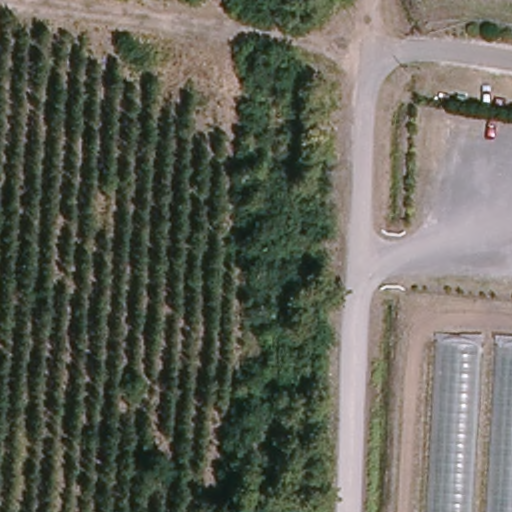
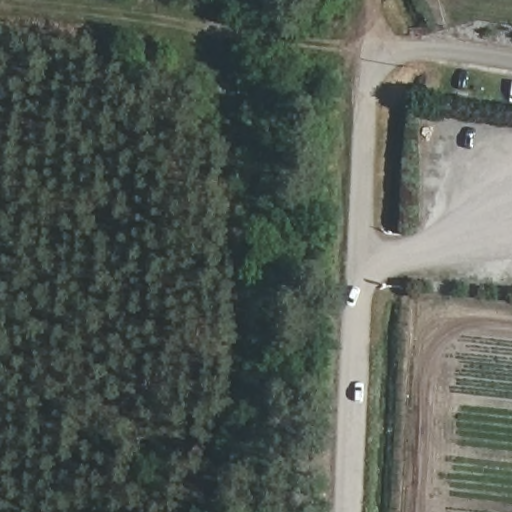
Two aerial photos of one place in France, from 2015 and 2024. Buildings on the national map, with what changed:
demolished [(423,512),(432,340),(512,345),(512,512),(423,512)]

